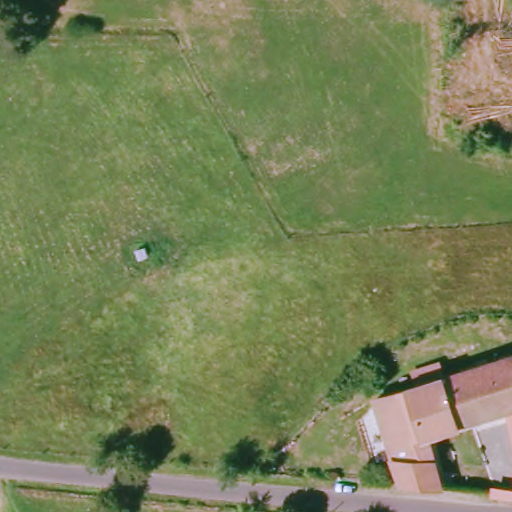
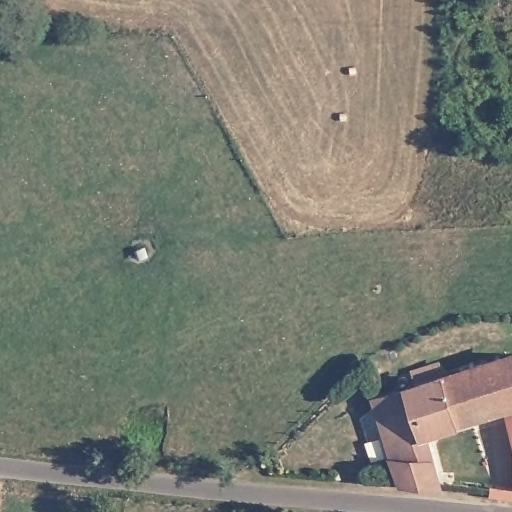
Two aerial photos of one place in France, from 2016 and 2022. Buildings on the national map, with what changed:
unchanged [(500,417),(450,435),(433,383),(512,359),(512,460),(511,454),(500,417)]
unchanged [(372,402),(433,383),(450,435),(422,444),(437,492),(405,490),(372,402)]

